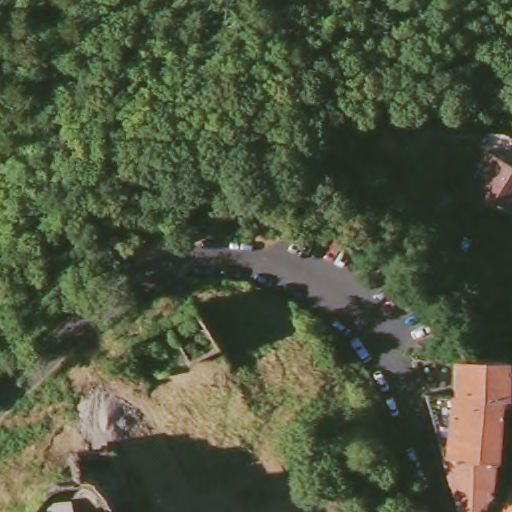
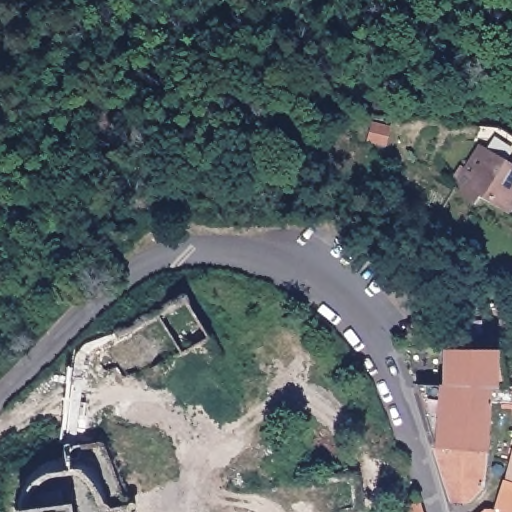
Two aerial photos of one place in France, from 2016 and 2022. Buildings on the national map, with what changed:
unchanged [(394,143),(371,139),(373,121),(395,126),(394,143)]
unchanged [(477,195),(472,201),(452,189),(450,189),(482,147),(474,142),(483,127),(500,128),(512,136),(512,208),(509,213),(477,195)]
unchanged [(492,381),(486,444),(435,441),(415,381),(446,384),(447,346),(498,349),(507,382),(492,381)]
unchanged [(486,444),(482,480),(469,497),(452,496),(435,441),(486,444)]
unchanged [(67,477),(69,448),(86,452),(100,463),(110,490),(134,492),(134,512),(33,512),(31,483),(67,477)]
unchanged [(510,478),(512,469),(512,511),(502,507),(510,478)]
unchanged [(417,512),(403,512),(412,479),(417,512)]
unchanged [(512,512),(479,512),(487,507),(502,507),(512,511),(512,512)]

